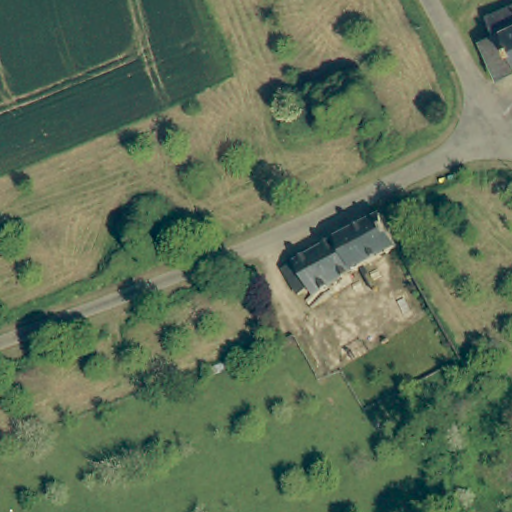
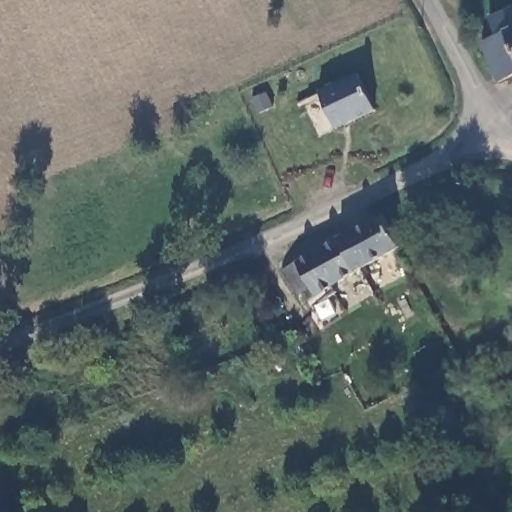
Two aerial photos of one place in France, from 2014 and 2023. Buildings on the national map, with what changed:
unchanged [(505,86),(485,47),(501,38),(491,21),(512,10),(512,82),(505,86)]
new [(320,91),(358,74),(375,111),(338,130),(320,91)]
unchanged [(320,280),(305,288),(293,266),(391,209),(410,244),(326,292),(320,280)]

